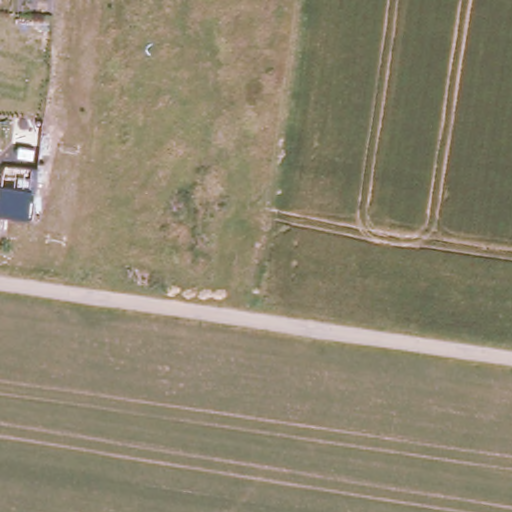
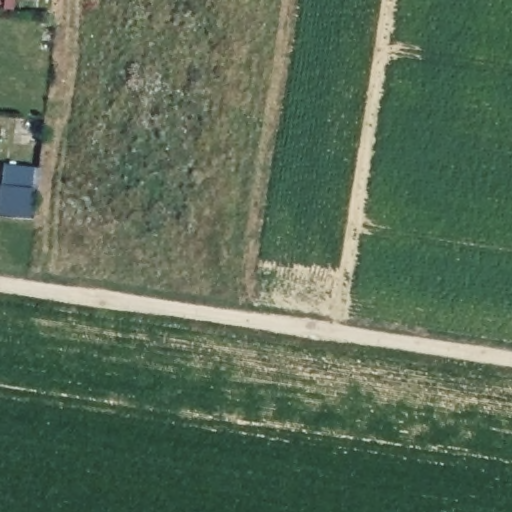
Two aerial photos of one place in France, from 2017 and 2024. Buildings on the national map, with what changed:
unchanged [(0,214),(0,186),(1,176),(35,180),(35,217),(0,214)]

